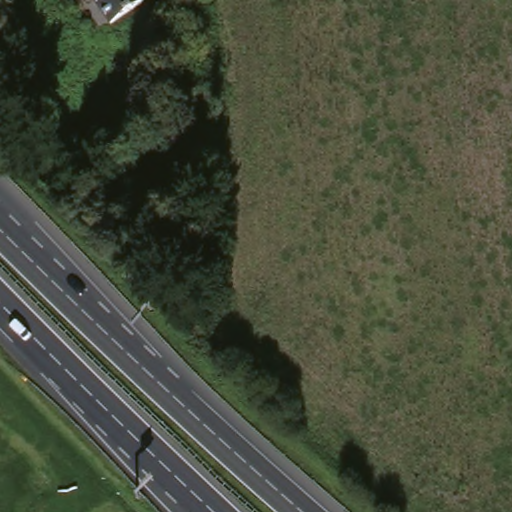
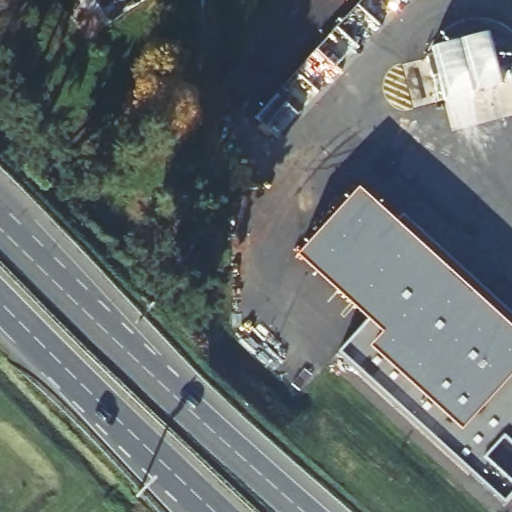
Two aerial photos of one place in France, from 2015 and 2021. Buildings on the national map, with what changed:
unchanged [(107,28),(89,0),(140,0),(143,4),(107,28)]
new [(432,51),(489,35),(503,86),(445,101),(439,79),(433,80),(428,59),(433,58),(432,51)]
new [(503,503),(340,354),(368,322),(297,258),(357,190),(512,332),(512,446),(504,438),(483,460),(512,485),(512,493),(503,503)]

